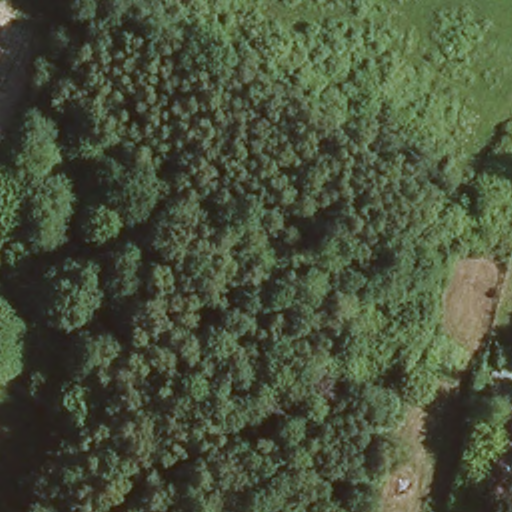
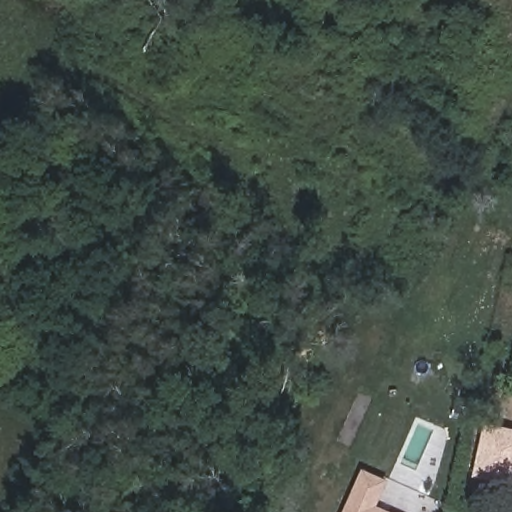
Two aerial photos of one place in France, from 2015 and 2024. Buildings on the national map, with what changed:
demolished [(512,415),(512,435),(508,464),(492,462),(500,412),(512,415)]
new [(472,476),(484,423),(512,429),(512,485),(472,476)]
new [(387,480),(377,506),(391,512),(342,512),(361,469),(387,480)]

